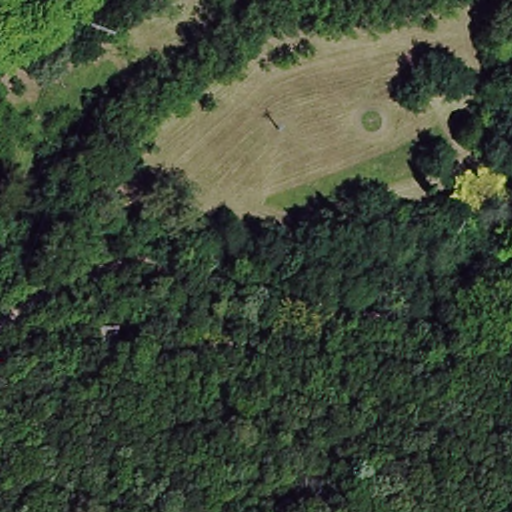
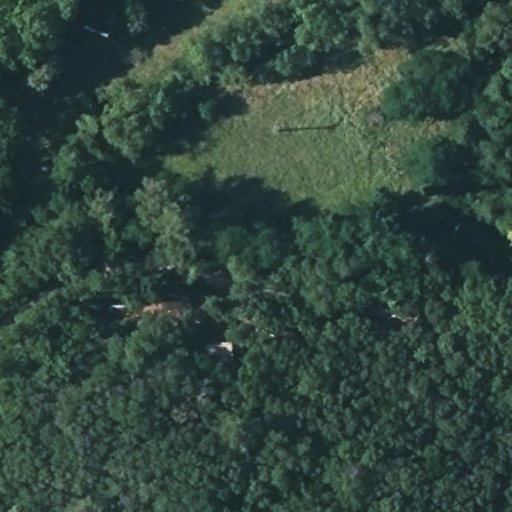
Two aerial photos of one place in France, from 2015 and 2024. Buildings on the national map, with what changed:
unchanged [(512,65),(508,65),(497,60),(502,38),(512,40),(512,65)]
unchanged [(120,352),(97,353),(97,332),(120,328),(120,352)]
unchanged [(229,370),(207,373),(205,348),(228,347),(229,370)]

